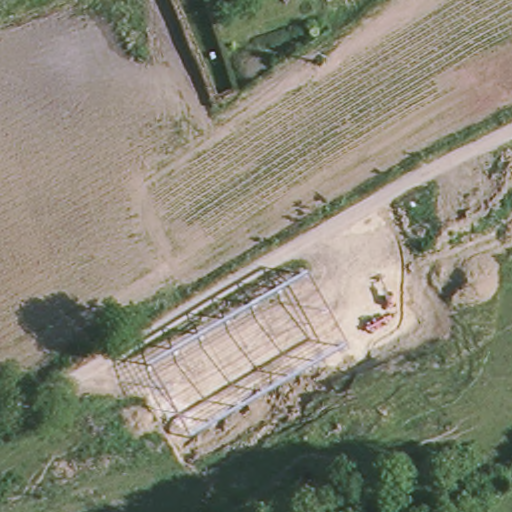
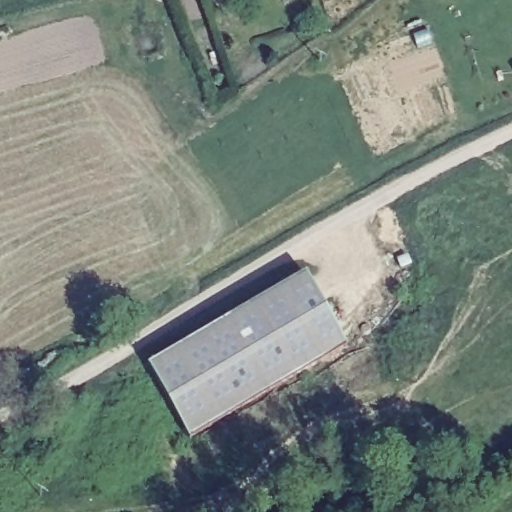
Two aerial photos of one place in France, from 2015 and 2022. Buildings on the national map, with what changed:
new [(347,345),(190,435),(150,362),(305,273),(347,345)]

